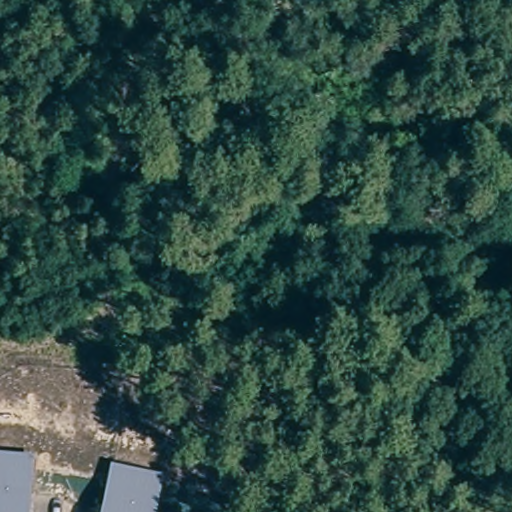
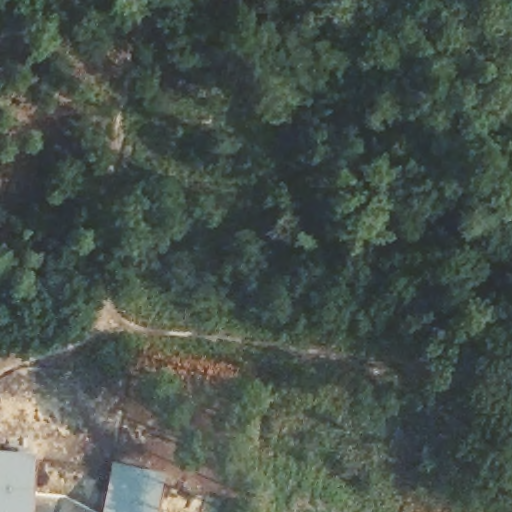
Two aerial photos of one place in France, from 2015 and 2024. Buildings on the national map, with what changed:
unchanged [(27,455),(21,512),(0,512),(0,452),(27,455)]
unchanged [(109,465),(156,476),(147,512),(98,512),(109,465)]

